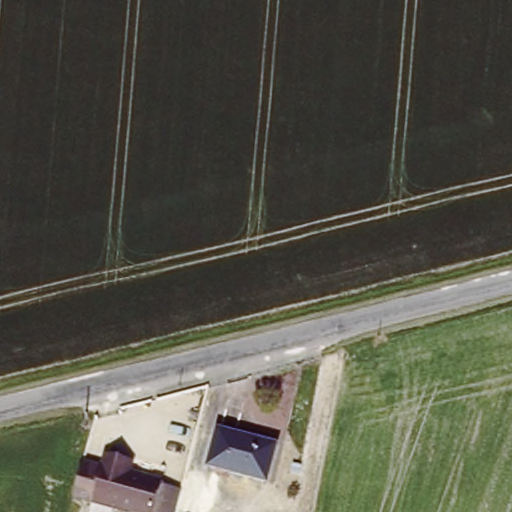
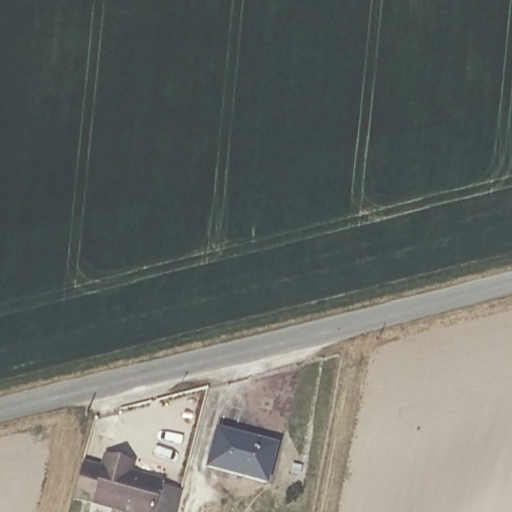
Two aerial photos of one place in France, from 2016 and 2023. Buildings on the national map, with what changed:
unchanged [(278,445),(267,485),(205,468),(216,428),(278,445)]
unchanged [(115,504),(113,512),(101,512),(92,510),(95,500),(71,495),(81,461),(102,465),(105,452),(122,455),(130,457),(127,469),(161,476),(160,480),(182,484),(174,512),(129,512),(130,507),(115,504)]

